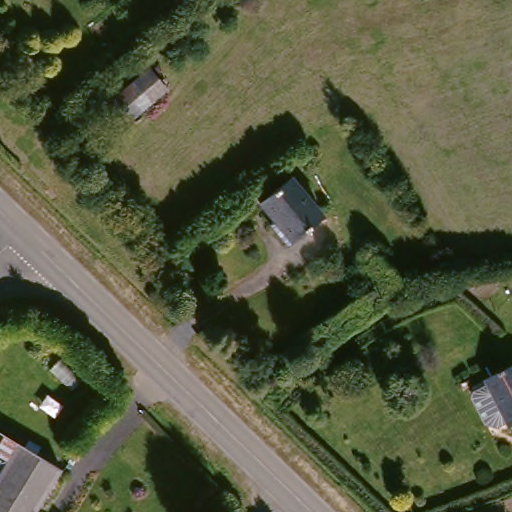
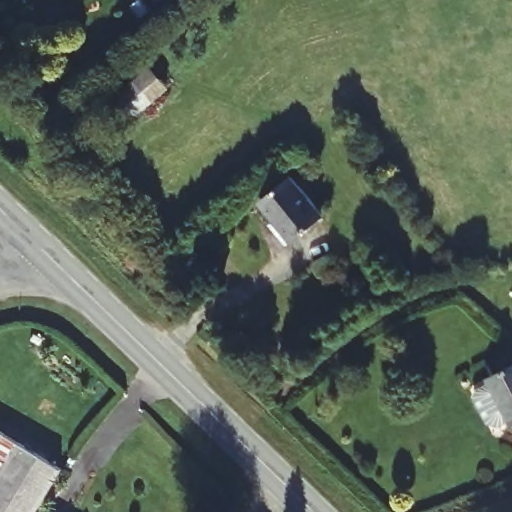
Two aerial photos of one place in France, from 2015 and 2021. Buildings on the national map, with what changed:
unchanged [(151,66),(166,89),(125,116),(111,93),(151,66)]
unchanged [(289,177),(319,211),(291,238),(261,202),(289,177)]
unchanged [(512,422),(509,424),(486,375),(512,363),(512,422)]
unchanged [(63,471),(37,512),(0,512),(0,475),(8,462),(0,457),(0,433),(63,471)]

